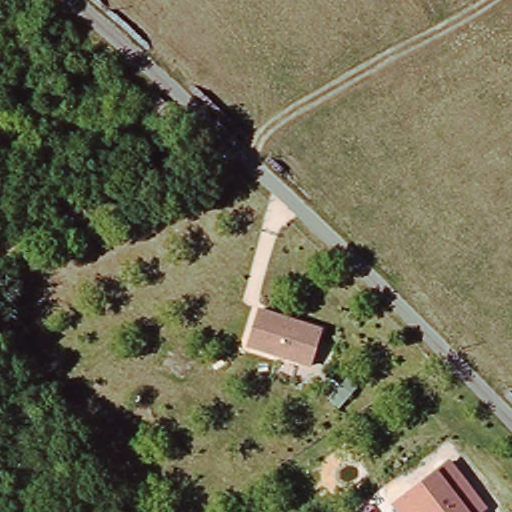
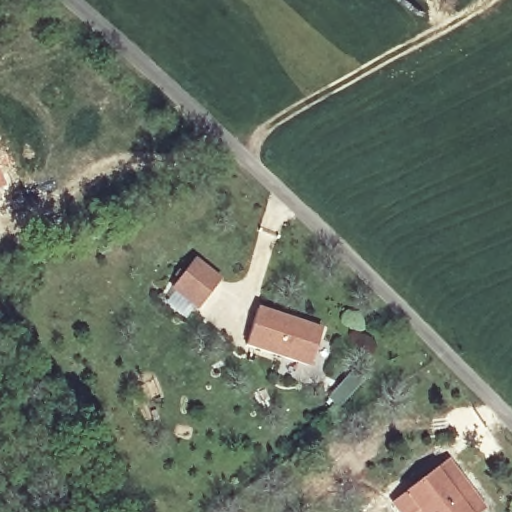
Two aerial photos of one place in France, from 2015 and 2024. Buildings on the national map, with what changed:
new [(170,290),(195,257),(223,278),(197,312),(170,290)]
unchanged [(256,309),(322,328),(309,368),(245,350),(256,309)]
unchanged [(449,461),(485,510),(483,512),(398,512),(392,503),(435,470),(449,461)]

